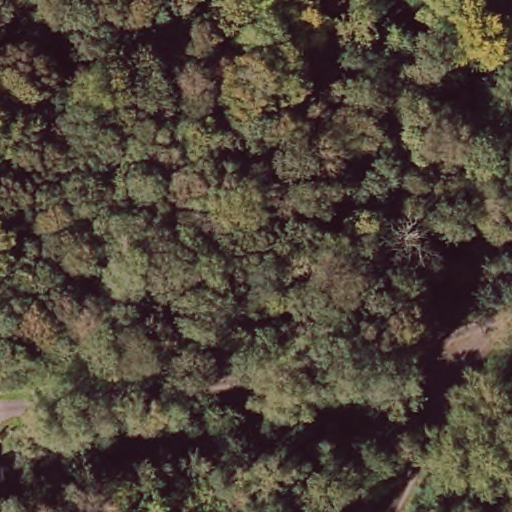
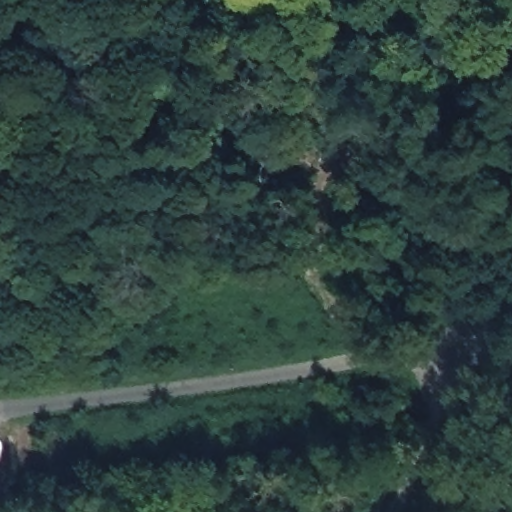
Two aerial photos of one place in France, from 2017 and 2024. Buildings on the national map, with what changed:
unchanged [(0,498),(0,482),(3,497),(0,498)]

